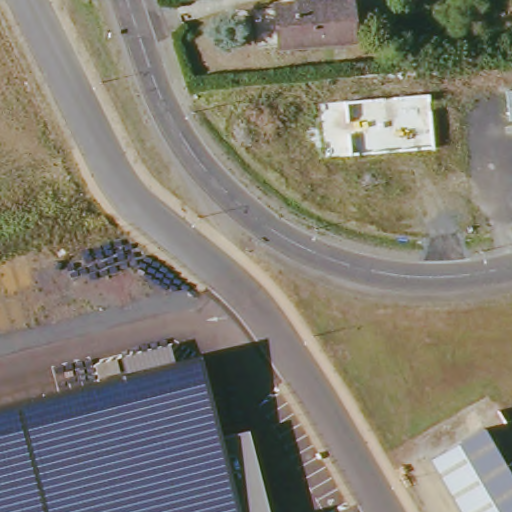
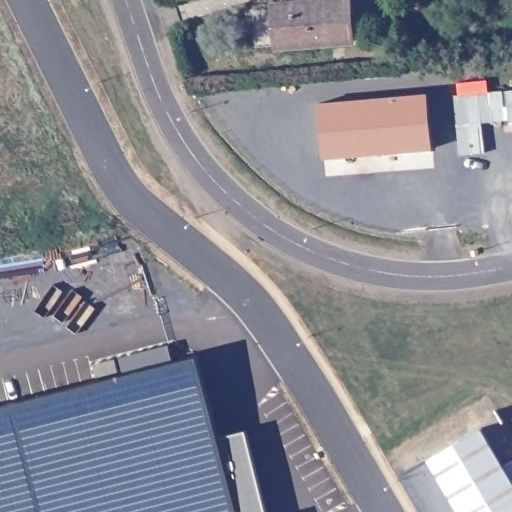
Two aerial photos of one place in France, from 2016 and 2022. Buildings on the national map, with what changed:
unchanged [(275,9),(353,3),(356,43),(279,49),(275,9)]
unchanged [(512,91),(512,121),(507,122),(504,92),(512,91)]
new [(428,94),(432,147),(349,155),(344,101),(428,94)]
unchanged [(146,355),(171,349),(174,363),(199,357),(221,441),(247,435),(266,512),(0,512),(0,406),(149,370),(146,355)]
unchanged [(485,426),(507,465),(512,461),(512,512),(463,512),(432,457),(485,426)]

